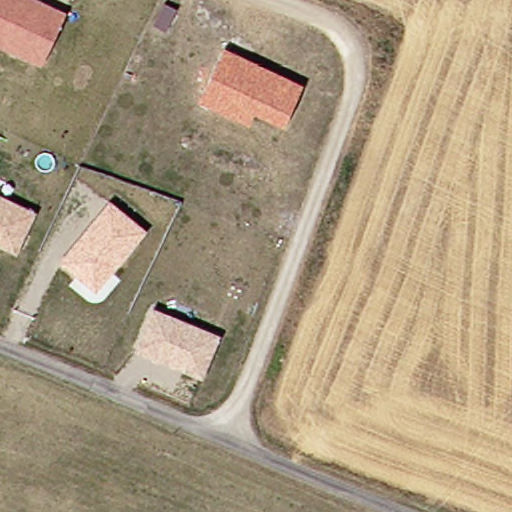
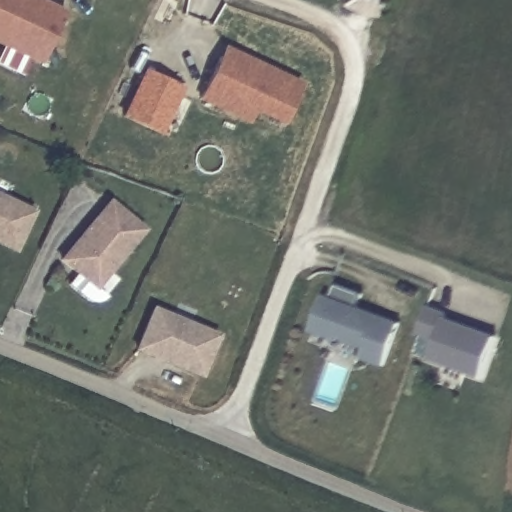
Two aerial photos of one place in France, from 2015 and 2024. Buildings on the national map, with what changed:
unchanged [(40,56),(0,37),(0,0),(43,0),(61,9),(40,56)]
unchanged [(282,124),(253,111),(247,124),(198,100),(224,45),(303,83),(282,124)]
new [(161,134),(122,116),(145,69),(184,86),(161,134)]
unchanged [(18,187),(13,201),(32,210),(18,248),(0,239),(0,180),(18,187)]
unchanged [(95,290),(59,262),(109,199),(146,229),(95,290)]
new [(332,298),(336,286),(362,295),(359,307),(400,323),(384,364),(362,355),(364,349),(340,339),(339,342),(310,332),(324,295),(332,298)]
unchanged [(202,378),(135,351),(152,307),(220,334),(202,378)]
new [(445,319),(495,338),(481,376),(462,369),(458,379),(444,374),(447,364),(431,359),(445,319)]

